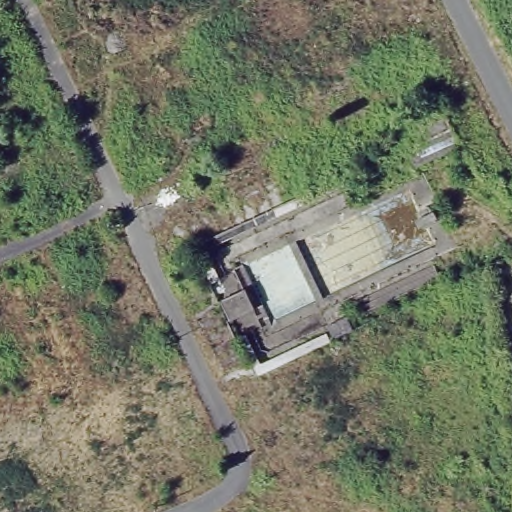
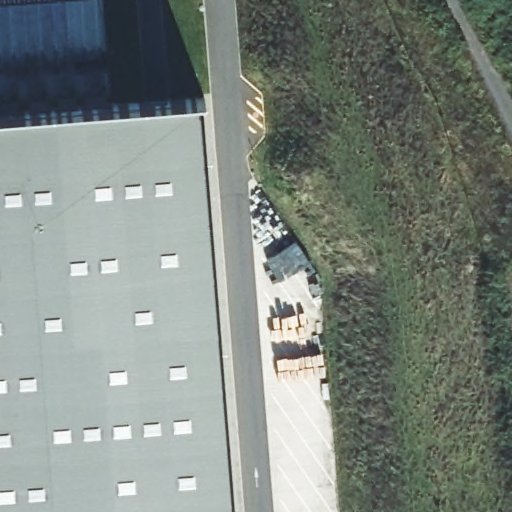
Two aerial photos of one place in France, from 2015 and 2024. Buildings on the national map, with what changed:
new [(220,512),(0,512),(0,122),(186,108),(220,512)]
demolished [(179,298),(172,285),(166,271),(193,258),(188,247),(177,224),(190,217),(203,211),(210,209),(216,205),(226,200),(241,194),(255,188),(268,181),(280,176),(294,170),(305,195),(335,182),(337,187),(200,251),(211,281),(205,284),(206,285),(212,298),(215,303),(218,312),(222,320),(225,325),(231,340),(231,341),(236,352),(242,365),(217,377),(211,365),(205,351),(198,338),(192,325),(185,311),(179,298)]

